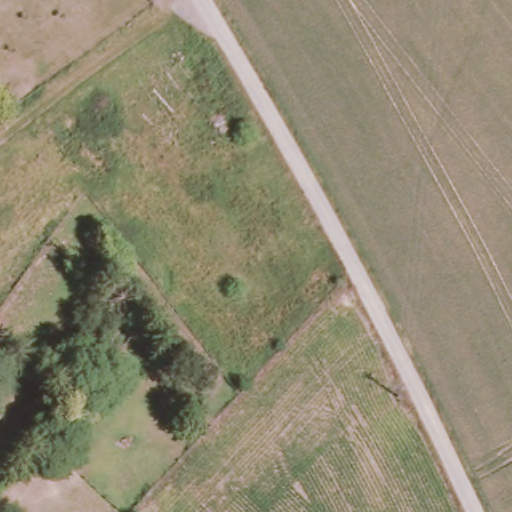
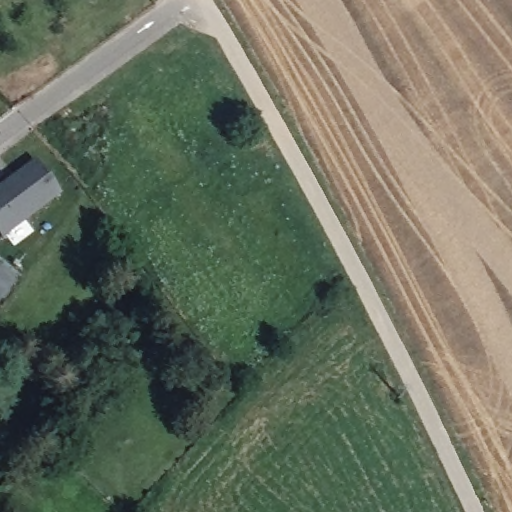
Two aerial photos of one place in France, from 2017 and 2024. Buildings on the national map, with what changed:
new [(58,194),(0,237),(0,186),(31,162),(58,194)]

